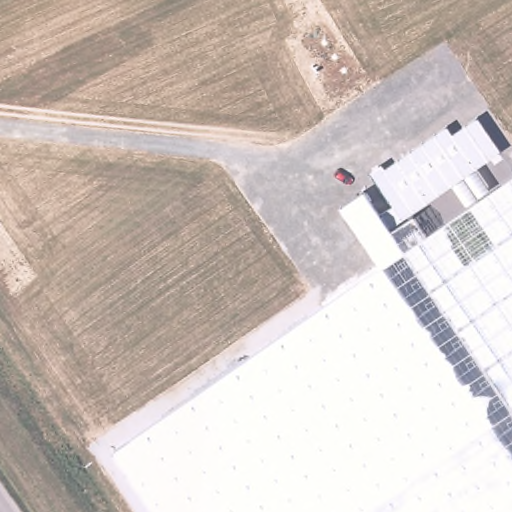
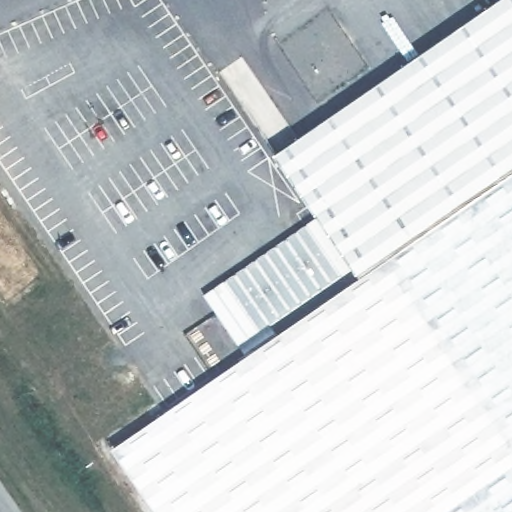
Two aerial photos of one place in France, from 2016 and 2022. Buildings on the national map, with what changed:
new [(512,176),(427,234),(381,266),(362,279),(360,281),(352,270),(271,325),(279,336),(247,358),(203,295),(317,217),(273,156),(500,0),(512,0),(512,176)]
unchanged [(381,266),(427,234),(512,176),(512,512),(158,512),(115,450),(381,266)]

